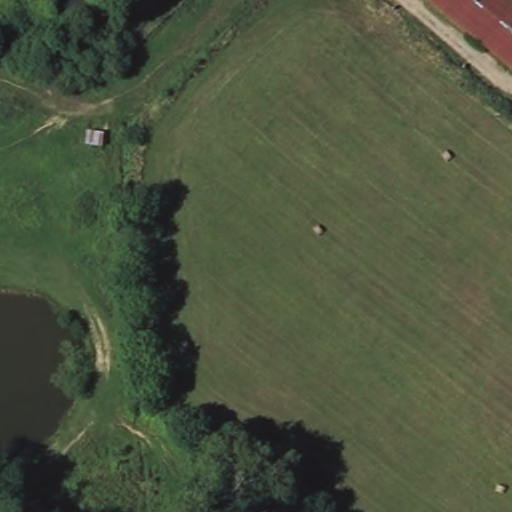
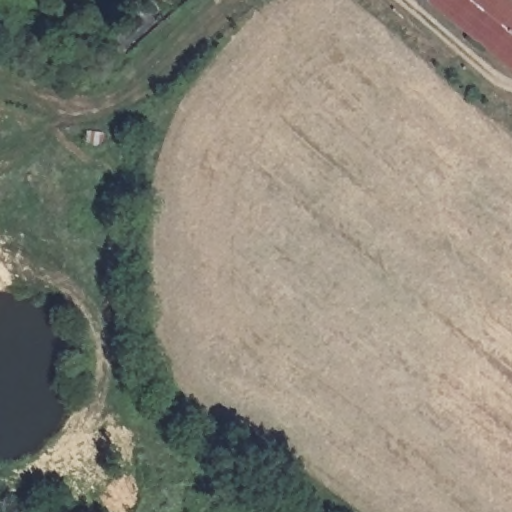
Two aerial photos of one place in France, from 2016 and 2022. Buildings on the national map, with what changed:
unchanged [(512,4),(512,66),(430,0),(507,0),(512,4)]

